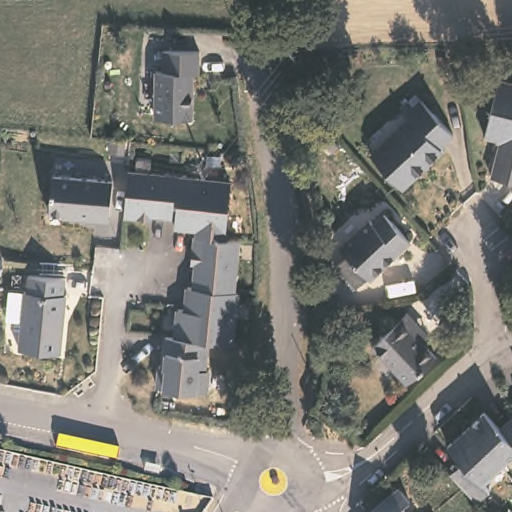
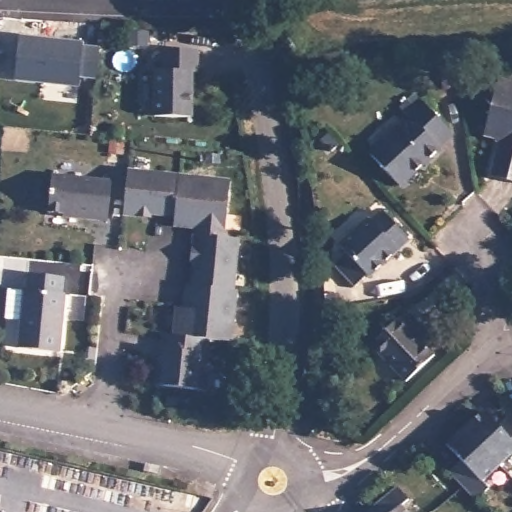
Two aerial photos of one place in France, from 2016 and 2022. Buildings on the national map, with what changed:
new [(17,34),(83,41),(83,47),(98,48),(96,77),(80,75),(78,87),(13,81),(17,34)]
unchanged [(202,68),(197,68),(197,114),(160,114),(160,68),(166,68),(166,47),(202,47),(202,68)]
unchanged [(512,177),(493,172),(499,146),(502,147),(504,136),(486,131),(499,77),(512,80),(512,177)]
unchanged [(454,136),(440,149),(442,151),(402,190),(369,154),(408,117),(407,115),(422,101),(454,136)]
unchanged [(182,174),(234,178),(228,236),(242,237),(238,277),(237,289),(240,289),(235,341),(211,339),(209,369),(212,369),(211,391),(161,386),(162,364),(170,365),(171,351),(167,351),(169,335),(177,335),(180,307),(193,308),(194,303),(190,302),(192,285),(197,285),(199,274),(201,253),(197,253),(199,233),(200,233),(202,220),(196,220),(196,224),(178,222),(179,214),(147,211),(147,215),(127,213),(132,170),(182,174)]
unchanged [(116,179),(112,220),(77,217),(77,214),(52,211),(56,174),(116,179)]
unchanged [(410,241),(370,278),(367,276),(357,286),(337,265),(348,255),(342,247),(371,220),(374,224),(386,214),(410,241)]
unchanged [(67,292),(70,292),(67,314),(65,313),(65,319),(67,319),(64,351),(22,347),(25,319),(11,318),(13,288),(28,289),(28,288),(31,289),(32,273),(69,276),(67,292)]
unchanged [(403,376),(369,341),(402,307),(414,318),(426,329),(419,336),(432,348),(403,376)]
unchanged [(479,400),(494,416),(509,401),(512,401),(512,439),(477,471),(486,479),(472,492),(450,469),(445,463),(457,452),(442,436),(479,400)]
unchanged [(368,511),(373,506),(397,485),(410,499),(402,505),(408,512),(368,512),(368,511)]

